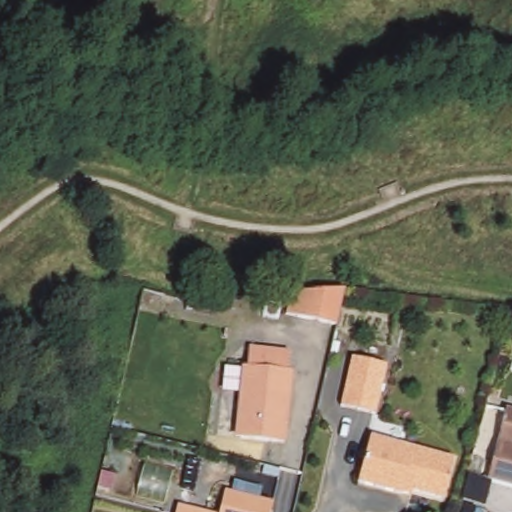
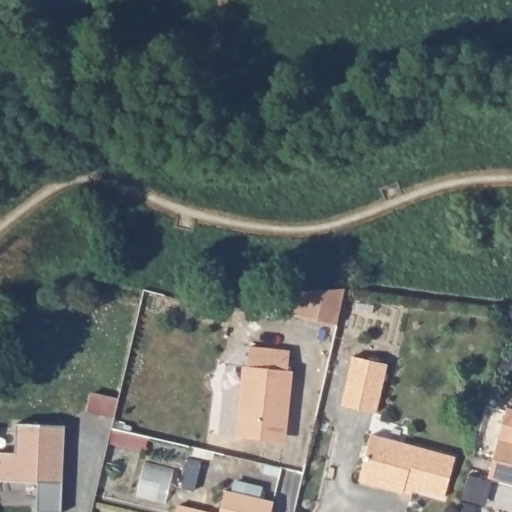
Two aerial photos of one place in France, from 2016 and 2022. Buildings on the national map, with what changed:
unchanged [(337,322),(322,318),(287,310),(292,288),(329,285),(343,284),(343,285),(344,285),(344,286),(345,286),(337,322)]
unchanged [(288,351),(286,371),(291,372),(284,432),(273,441),(239,437),(240,420),(236,415),(239,389),(244,385),(249,347),(288,351)]
unchanged [(387,365),(375,414),(341,406),(352,357),(387,365)]
unchanged [(488,474),(503,417),(506,404),(512,405),(512,481),(488,474)]
new [(16,423),(65,426),(61,512),(35,512),(36,482),(0,480),(0,452),(14,453),(16,423)]
unchanged [(454,459),(443,498),(403,488),(402,494),(358,482),(371,436),(454,459)]
unchanged [(269,512),(218,512),(224,487),(273,498),(269,512)]

